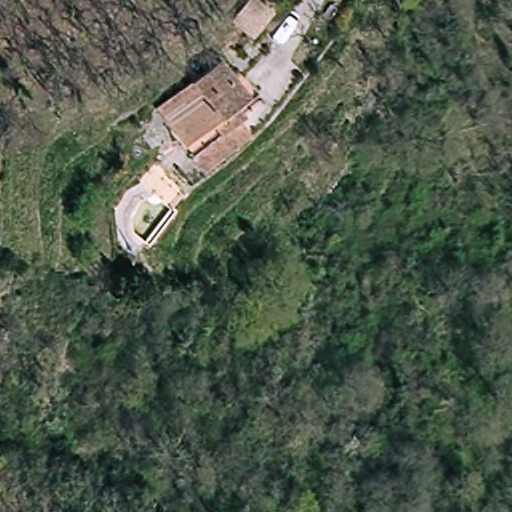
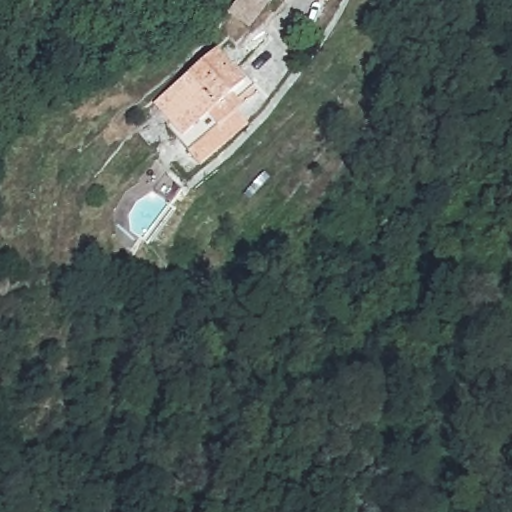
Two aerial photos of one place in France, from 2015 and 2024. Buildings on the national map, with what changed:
unchanged [(270,0),(250,25),(228,12),(238,0),(270,0)]
unchanged [(187,151),(195,146),(185,135),(163,100),(219,46),(248,87),(236,100),(250,123),(200,169),(187,151)]

